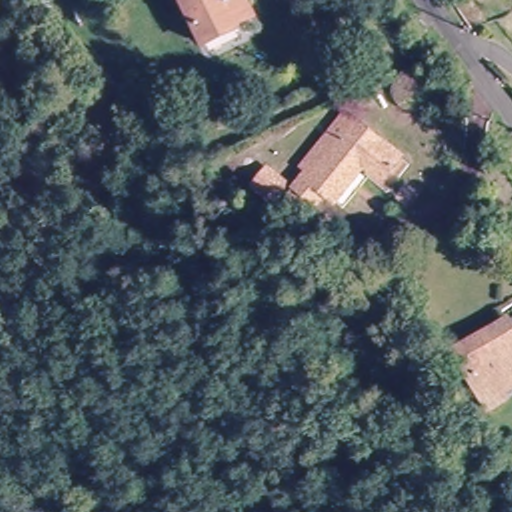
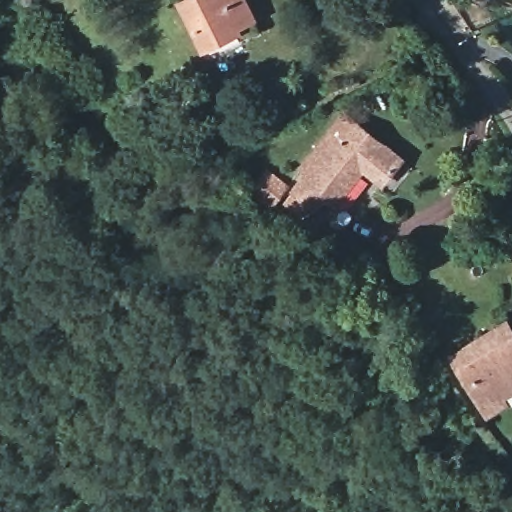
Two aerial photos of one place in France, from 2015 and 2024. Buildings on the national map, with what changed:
unchanged [(199,51),(174,0),(251,0),(260,19),(199,51)]
unchanged [(428,79),(433,81),(437,84),(440,89),(441,94),(441,100),(439,105),(435,109),(431,112),(425,113),(420,113),(415,111),(411,108),(408,102),(407,96),(408,91),(410,86),(414,82),(419,79),(422,78),(428,79)]
unchanged [(390,177),(371,159),(337,196),(327,186),(317,197),(296,177),(307,165),(313,170),(364,118),(406,159),(390,177)]
unchanged [(269,194),(264,189),(248,174),(264,158),(280,173),(284,178),(269,194)]
unchanged [(511,316),(512,318),(512,402),(484,417),(448,350),(511,316)]

